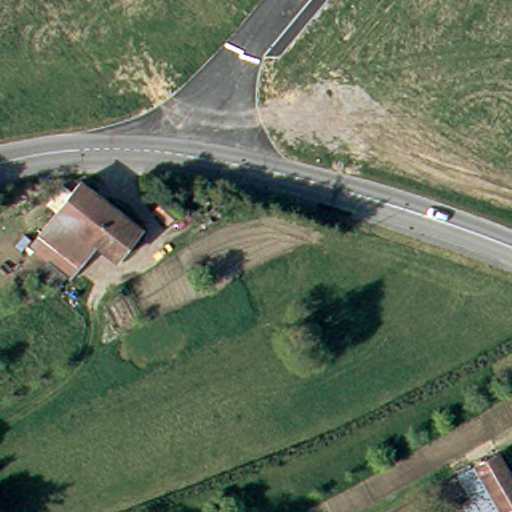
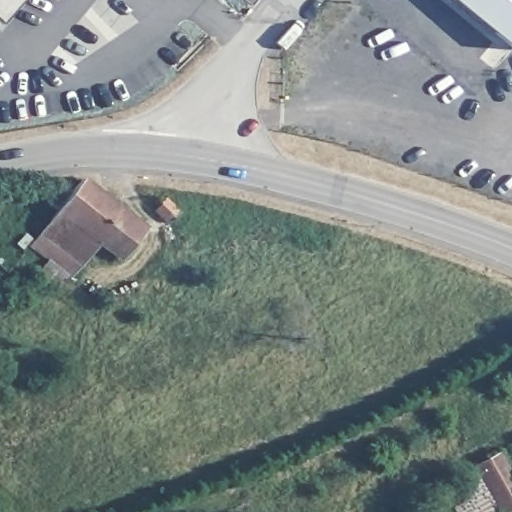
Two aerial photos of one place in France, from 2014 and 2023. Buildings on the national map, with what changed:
new [(0,0),(20,0),(0,22),(0,0)]
new [(512,51),(450,0),(512,0),(512,50),(512,51)]
unchanged [(119,257),(97,241),(72,273),(34,242),(84,180),(144,226),(119,257)]
unchanged [(156,212),(168,199),(180,210),(169,223),(156,212)]
unchanged [(492,492),(477,465),(501,452),(512,471),(512,507),(504,512),(503,512),(469,512),(465,506),(492,492)]

